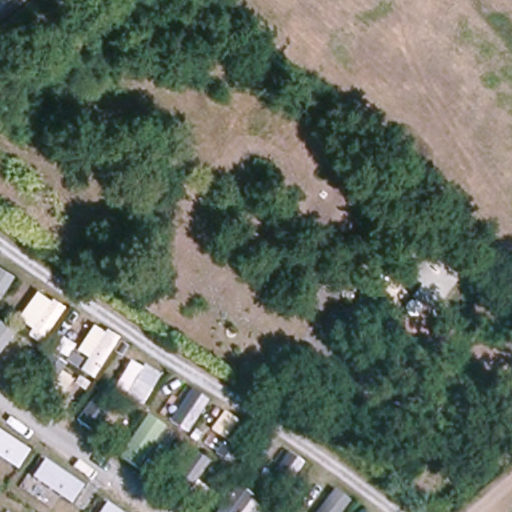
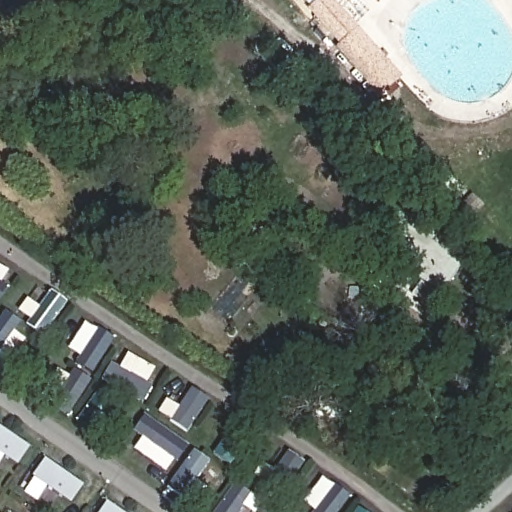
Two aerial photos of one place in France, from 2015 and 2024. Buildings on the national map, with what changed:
new [(379,98),(335,48),(338,45),(307,10),(320,0),(333,0),(402,77),(379,98)]
unchanged [(462,268),(441,298),(412,277),(434,248),(462,268)]

